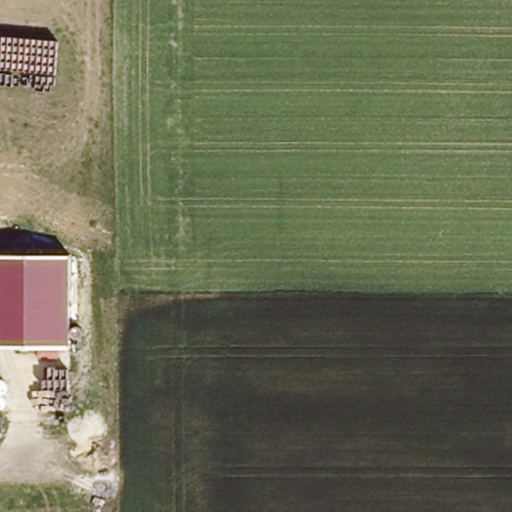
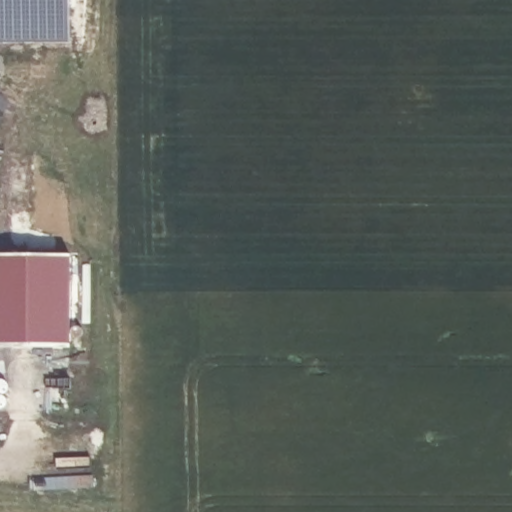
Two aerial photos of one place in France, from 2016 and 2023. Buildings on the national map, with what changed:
new [(70,42),(0,42),(0,0),(70,0),(70,42)]
unchanged [(70,345),(0,346),(0,256),(71,255),(70,345)]

